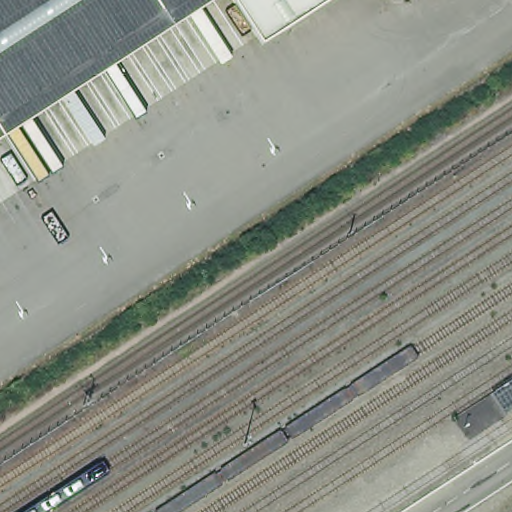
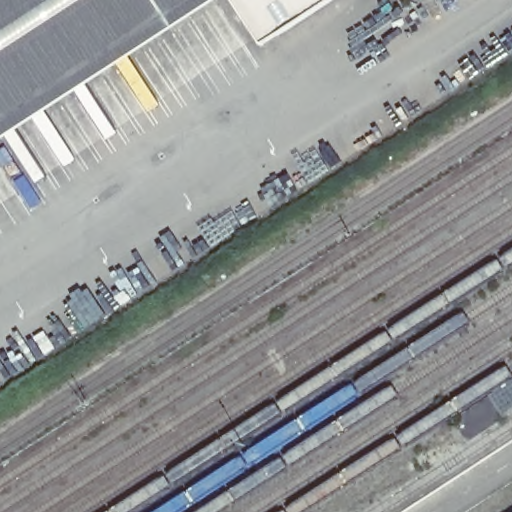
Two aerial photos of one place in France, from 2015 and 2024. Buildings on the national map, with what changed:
unchanged [(8,136),(0,124),(0,0),(215,0),(8,136)]
unchanged [(255,36),(230,0),(314,0),(255,36)]
unchanged [(8,136),(0,142),(0,124),(8,136)]

